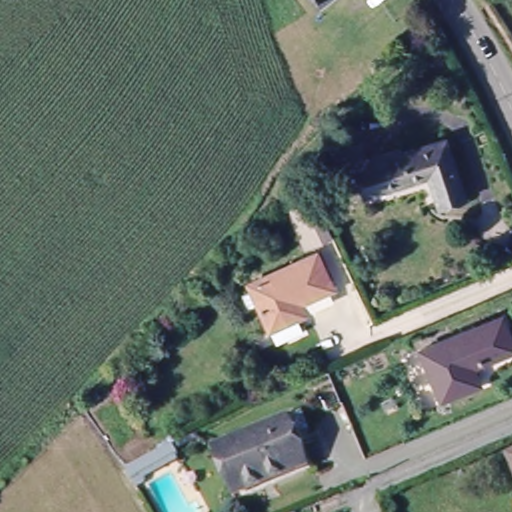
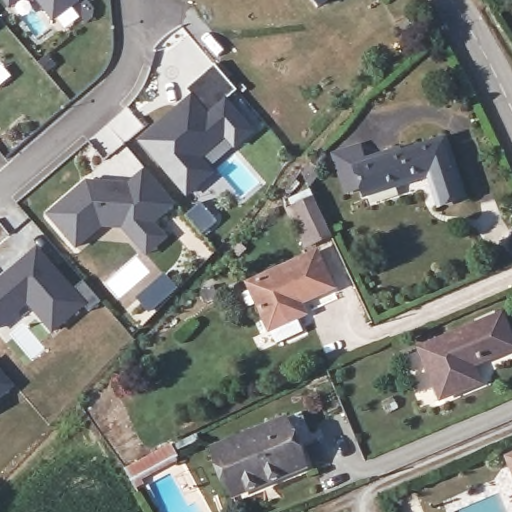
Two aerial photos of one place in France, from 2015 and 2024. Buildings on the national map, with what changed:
new [(11,3),(8,0),(16,0),(11,3)]
new [(55,16),(42,0),(76,0),(55,16)]
unchanged [(320,2),(318,0),(323,0),(320,2)]
new [(180,106),(185,111),(197,100),(186,87),(215,62),(237,88),(226,98),(252,129),(236,144),(226,133),(199,155),(212,170),(187,192),(142,138),(180,106)]
unchanged [(465,196),(440,203),(431,173),(363,195),(361,187),(347,191),(338,168),(331,151),(360,143),(365,159),(448,136),(465,196)]
new [(147,253),(135,238),(124,226),(102,224),(77,245),(50,213),(88,181),(117,183),(117,186),(129,187),(130,183),(147,168),(177,202),(154,221),(167,236),(147,253)]
unchanged [(332,237),(307,250),(291,212),(316,200),(332,237)]
new [(0,278),(12,268),(14,271),(41,247),(87,301),(57,328),(43,312),(32,299),(0,327),(0,278)]
unchanged [(277,344),(272,332),(252,286),(317,255),(332,290),(302,305),(307,316),(296,320),(302,333),(277,344)]
new [(166,273),(177,286),(160,301),(150,310),(139,296),(149,288),(166,273)]
unchanged [(502,318),(512,341),(512,353),(472,369),(480,386),(442,402),(421,352),(502,318)]
new [(0,400),(0,367),(17,386),(0,400)]
unchanged [(231,498),(211,452),(282,423),(296,417),(302,434),(290,440),(301,470),(231,498)]
unchanged [(171,444),(180,463),(136,484),(126,467),(171,444)]
unchanged [(512,460),(512,471),(508,462),(512,460)]

